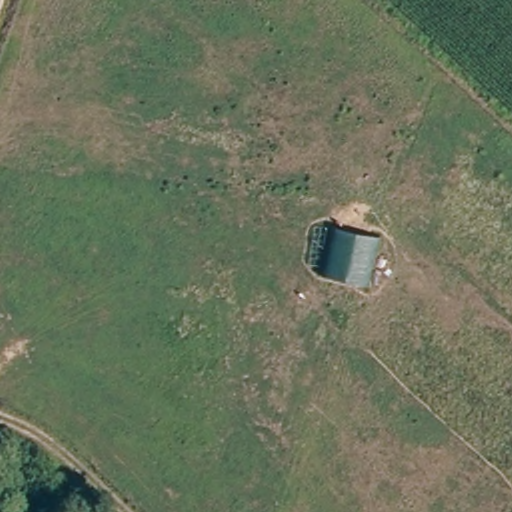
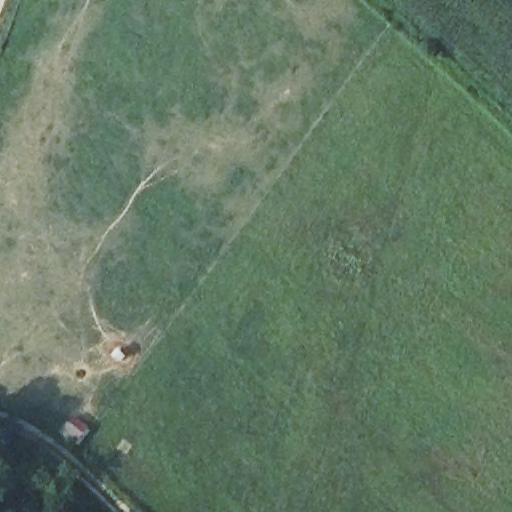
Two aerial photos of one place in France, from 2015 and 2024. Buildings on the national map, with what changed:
new [(378,239),(368,285),(325,276),(334,227),(378,239)]
new [(76,417),(91,430),(79,447),(64,436),(76,417)]

